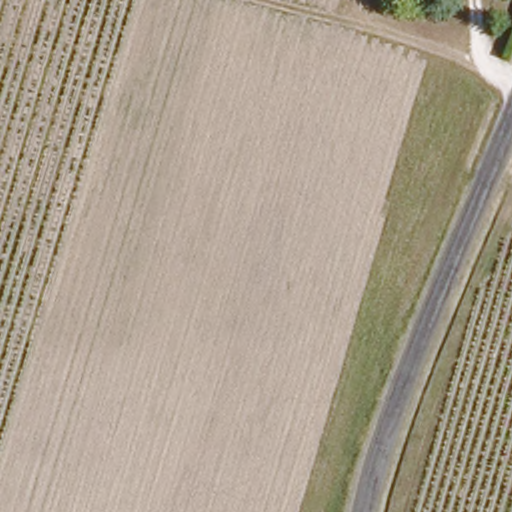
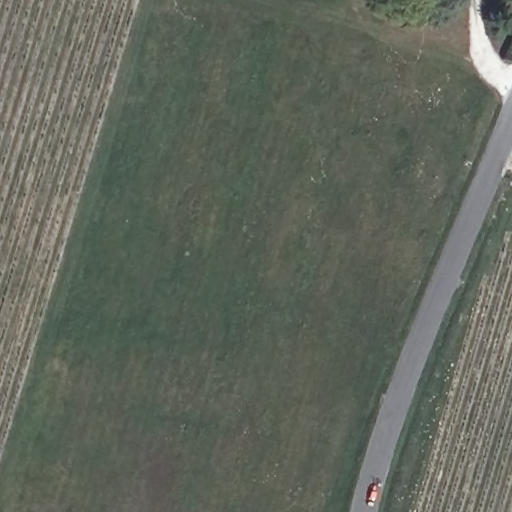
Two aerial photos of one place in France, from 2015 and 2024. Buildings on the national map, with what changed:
[]

